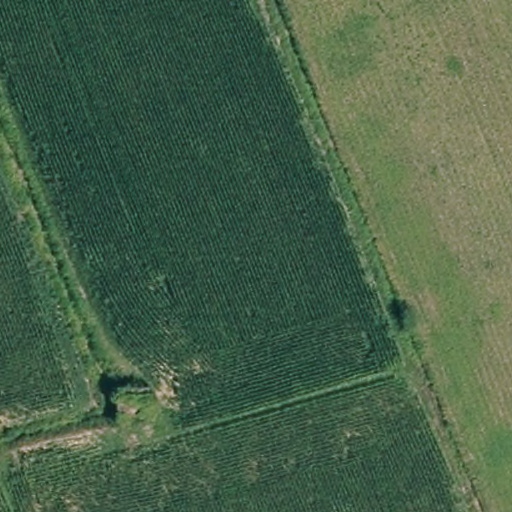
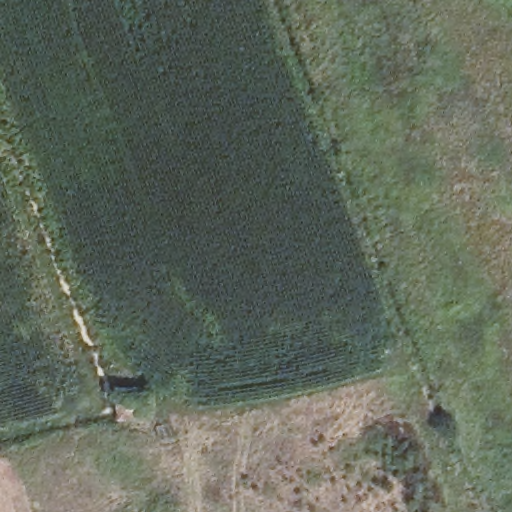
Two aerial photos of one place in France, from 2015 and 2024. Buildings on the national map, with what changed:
unchanged [(150,385),(152,415),(122,418),(120,389),(150,385)]

